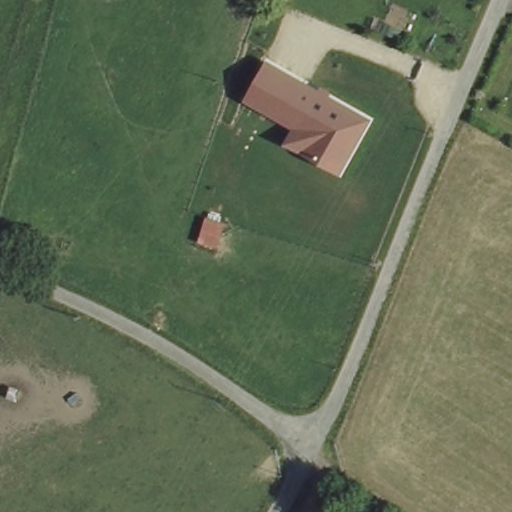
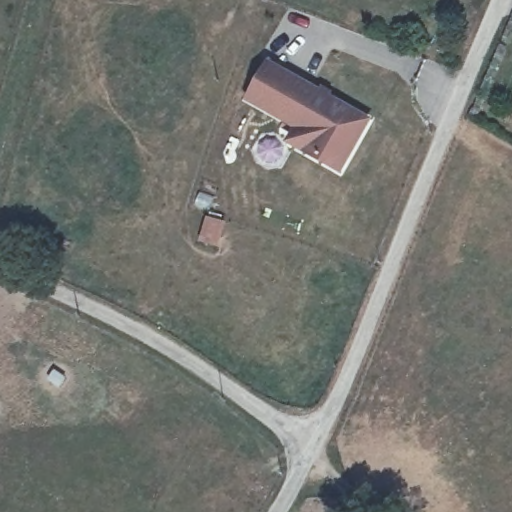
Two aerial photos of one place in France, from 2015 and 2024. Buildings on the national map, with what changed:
unchanged [(338,170),(305,151),(313,134),(248,98),(268,62),(366,119),(338,170)]

